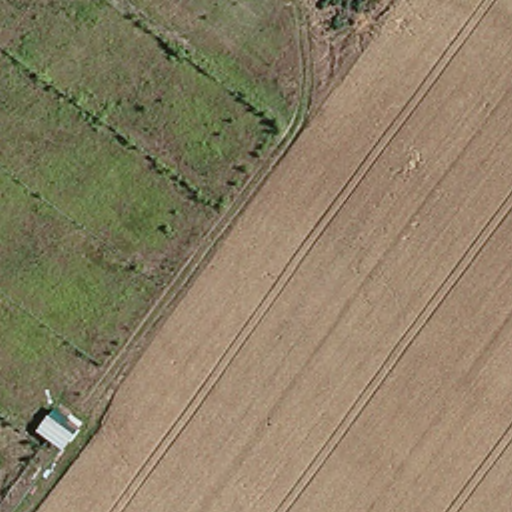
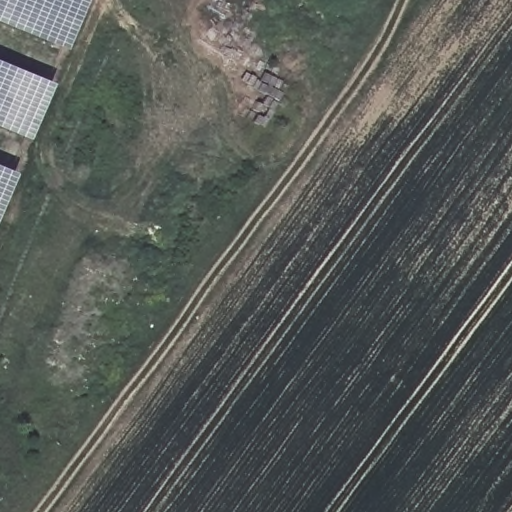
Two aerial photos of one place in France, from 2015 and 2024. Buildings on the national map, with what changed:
new [(0,0),(90,0),(69,51),(0,23),(0,0)]
new [(32,141),(0,129),(0,64),(54,86),(32,141)]
new [(0,216),(0,169),(17,176),(0,216)]

